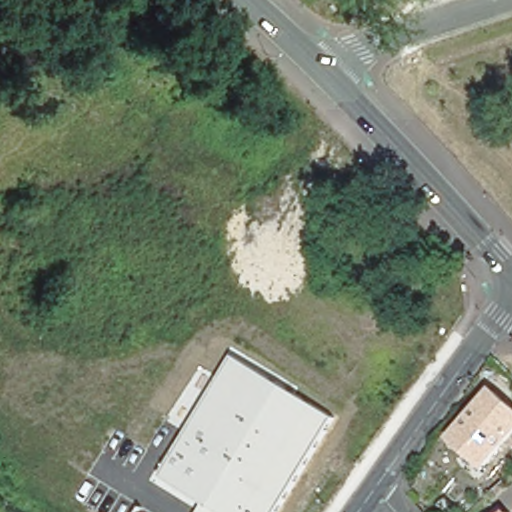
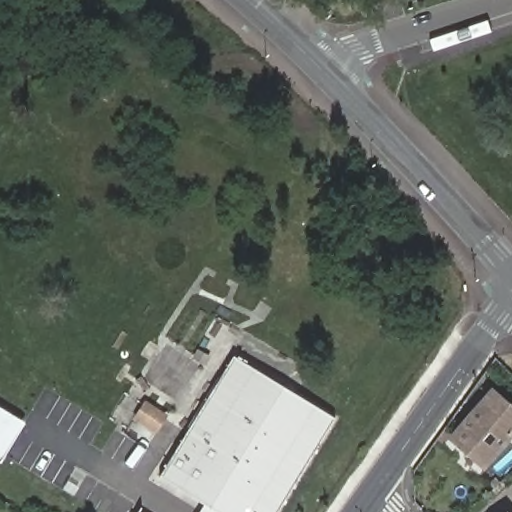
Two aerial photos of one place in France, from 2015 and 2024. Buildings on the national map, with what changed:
unchanged [(277,512),(199,512),(204,505),(158,478),(234,357),(334,418),(277,512)]
unchanged [(456,444),(493,398),(512,413),(512,436),(485,469),(456,444)]
new [(1,461),(0,460),(0,406),(25,422),(1,461)]
unchanged [(505,510),(508,512),(503,512),(505,510)]

